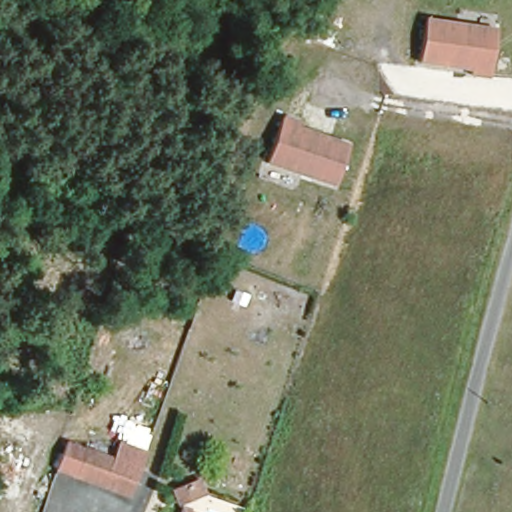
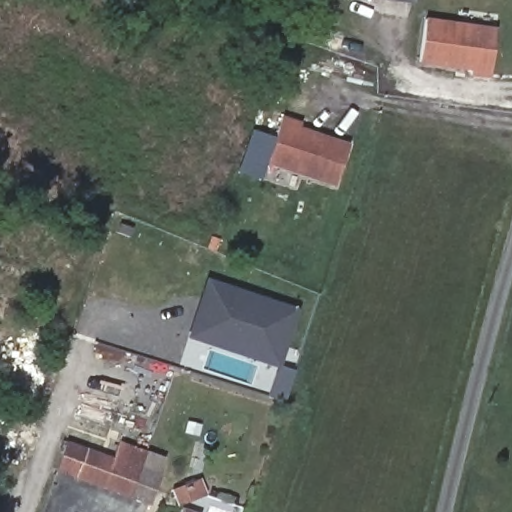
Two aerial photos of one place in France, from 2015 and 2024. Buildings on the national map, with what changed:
new [(413,1),(402,0),(414,0),(413,1)]
unchanged [(493,29),(487,76),(467,73),(467,67),(416,61),(422,18),(493,29)]
unchanged [(300,125),(300,130),(349,145),(337,186),(267,164),(282,119),(300,125)]
new [(280,367),(186,337),(206,279),(299,307),(280,367)]
unchanged [(134,456),(126,487),(69,469),(78,438),(134,456)]
unchanged [(173,508),(166,487),(198,476),(207,495),(173,508)]

